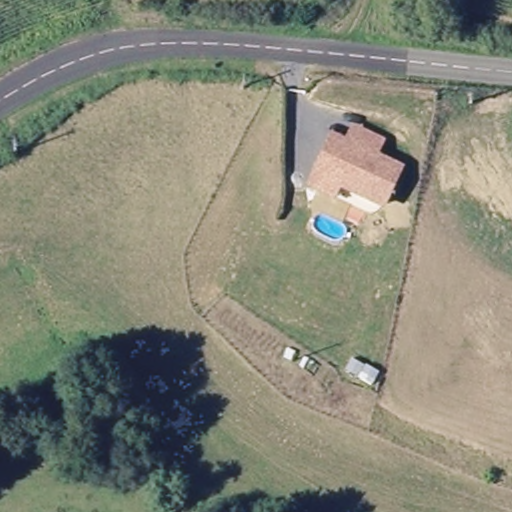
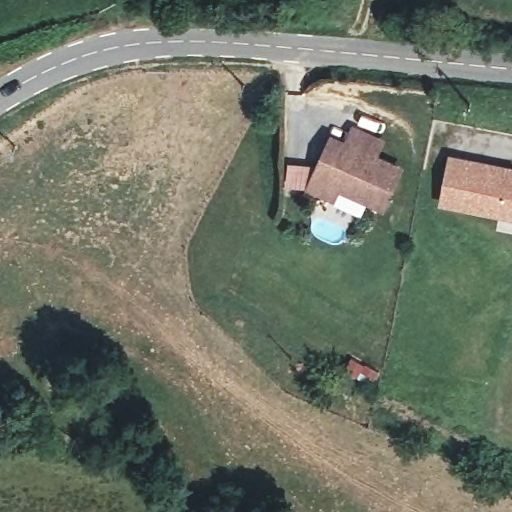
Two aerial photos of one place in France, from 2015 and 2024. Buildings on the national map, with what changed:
unchanged [(314,200),(322,183),(332,161),(337,151),(351,158),(358,144),(384,155),(377,170),(403,181),(386,219),(341,198),(336,210),(314,200)]
new [(512,219),(438,205),(448,155),(512,166),(512,219)]

